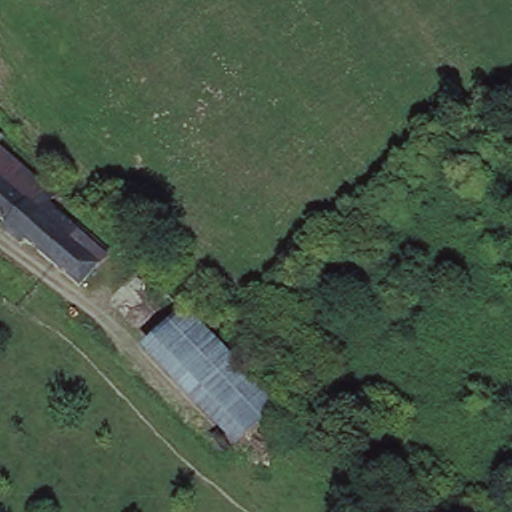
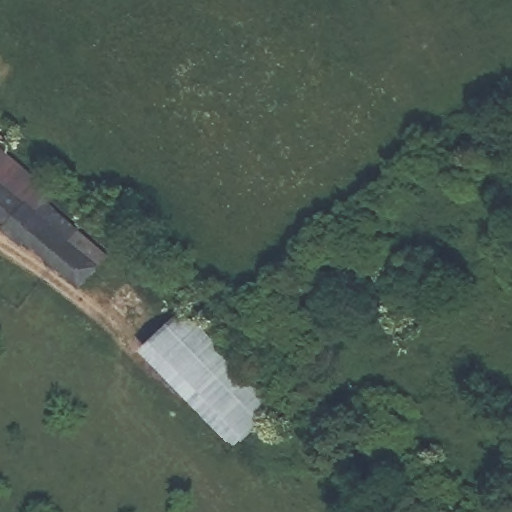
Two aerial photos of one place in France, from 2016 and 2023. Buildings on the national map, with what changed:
unchanged [(54,192),(47,200),(34,188),(26,195),(0,174),(0,147),(54,192)]
unchanged [(26,195),(34,188),(47,200),(77,224),(107,251),(80,282),(32,239),(25,246),(5,226),(9,219),(0,212),(0,174),(26,195)]
unchanged [(277,400),(232,442),(138,345),(182,305),(277,400)]

